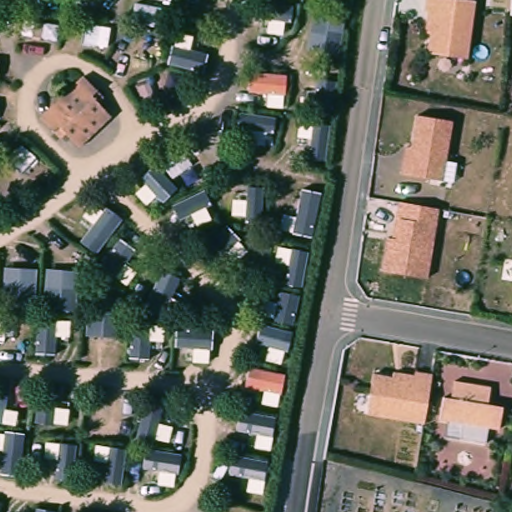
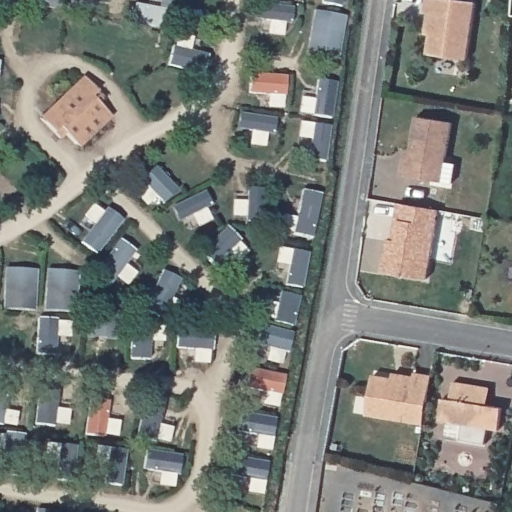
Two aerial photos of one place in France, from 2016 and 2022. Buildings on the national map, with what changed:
unchanged [(423,0),(453,0),(473,2),(465,59),(424,55),(427,35),(422,35),(425,14),(421,14),(423,0)]
unchanged [(54,132),(41,119),(86,75),(99,87),(108,95),(101,102),(115,115),(85,147),(70,133),(63,140),(54,132)]
unchanged [(428,179),(398,174),(400,158),(402,147),(408,149),(413,115),(449,120),(442,165),(440,180),(428,179)]
unchanged [(426,278),(379,272),(384,240),(389,240),(393,220),(395,203),(437,209),(426,278)]
unchanged [(360,417),(367,377),(386,380),(387,375),(408,377),(409,373),(426,375),(418,425),(360,417)]
unchanged [(496,433),(459,428),(457,444),(440,442),(443,425),(435,425),(438,402),(446,403),(449,386),(479,390),(487,391),(484,408),(500,411),(496,433)]

